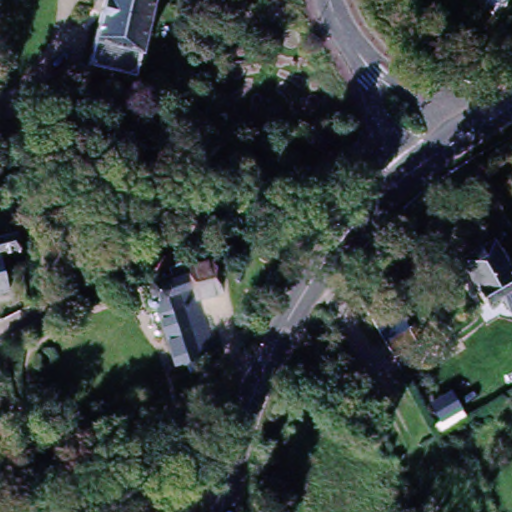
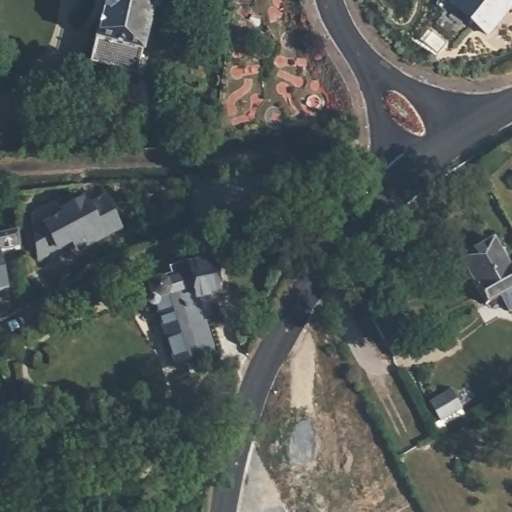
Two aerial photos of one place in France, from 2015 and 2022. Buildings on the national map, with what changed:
unchanged [(136,75),(88,62),(104,0),(154,0),(136,75)]
new [(471,22),(470,12),(457,0),(512,0),(512,7),(488,36),(471,22)]
new [(59,209),(58,204),(81,190),(86,199),(101,190),(118,219),(93,234),(91,231),(73,241),(68,234),(36,252),(31,225),(59,209)]
unchanged [(18,231),(20,247),(0,252),(0,236),(18,231)]
unchanged [(489,241),(512,281),(512,287),(481,305),(456,260),(489,241)]
unchanged [(6,290),(0,292),(0,265),(6,290)]
unchanged [(174,366),(170,349),(163,317),(156,316),(151,286),(156,283),(213,269),(219,298),(199,303),(208,339),(212,357),(174,366)]
unchanged [(393,356),(384,340),(408,326),(418,342),(393,356)]

